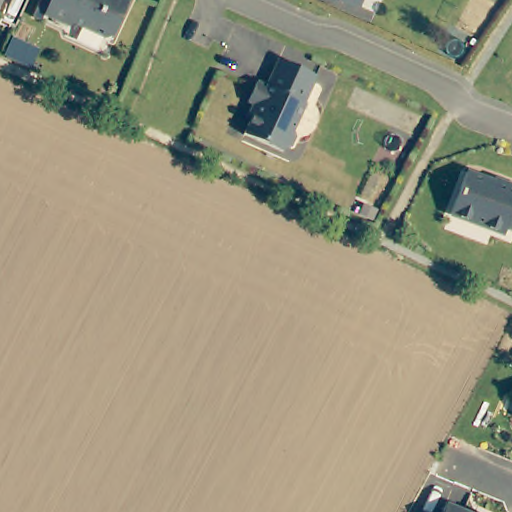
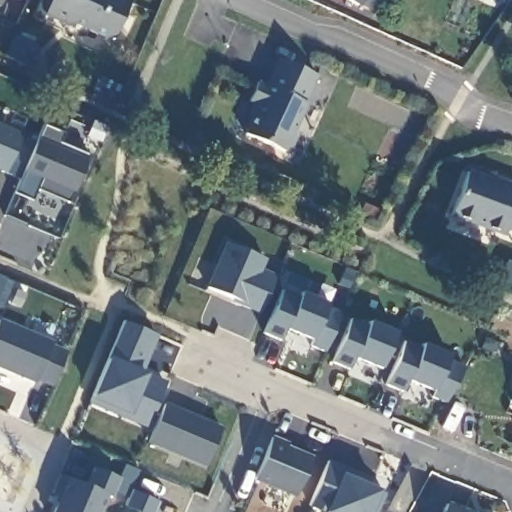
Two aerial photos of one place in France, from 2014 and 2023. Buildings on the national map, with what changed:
unchanged [(113,30),(104,33),(72,19),(67,21),(42,9),(47,0),(127,0),(113,30)]
unchanged [(270,79),(282,51),(319,68),(296,121),(299,129),(293,141),(288,142),(286,145),(247,128),(260,99),(251,95),(260,75),(270,79)]
new [(66,201),(36,190),(31,200),(13,192),(19,176),(0,169),(0,124),(35,138),(42,124),(62,133),(58,142),(87,154),(66,201)]
unchanged [(494,184),(495,181),(512,187),(512,230),(508,229),(505,236),(451,216),(467,174),(494,184)]
new [(260,312),(234,302),(235,298),(204,288),(223,241),(267,257),(262,268),(275,273),(260,312)]
new [(325,352),(309,347),(311,338),(284,328),(280,339),(263,332),(282,288),(297,293),(299,290),(327,302),(324,308),(340,313),(325,352)]
new [(53,339),(51,343),(69,349),(52,385),(37,379),(34,383),(0,368),(0,317),(53,339)]
new [(381,370),(353,358),(348,367),(332,360),(351,318),(366,325),(368,320),(397,332),(381,370)]
new [(144,370),(167,379),(146,427),(87,404),(90,395),(106,356),(120,321),(157,336),(144,370)]
new [(446,404),(432,398),(434,392),(407,381),(404,392),(384,384),(403,339),(419,346),(421,341),(449,353),(446,359),(464,365),(446,404)]
new [(205,467),(145,443),(163,401),(222,426),(205,467)]
new [(287,447),(311,455),(294,496),(252,480),(271,434),(290,442),(287,447)]
new [(379,490),(385,493),(377,512),(371,512),(325,512),(308,505),(326,458),(371,476),(367,485),(379,490)]
new [(115,490),(113,496),(107,493),(99,512),(52,512),(66,477),(84,484),(92,466),(119,476),(124,462),(139,468),(126,496),(115,490)]
unchanged [(468,512),(441,512),(444,503),(468,512)]

